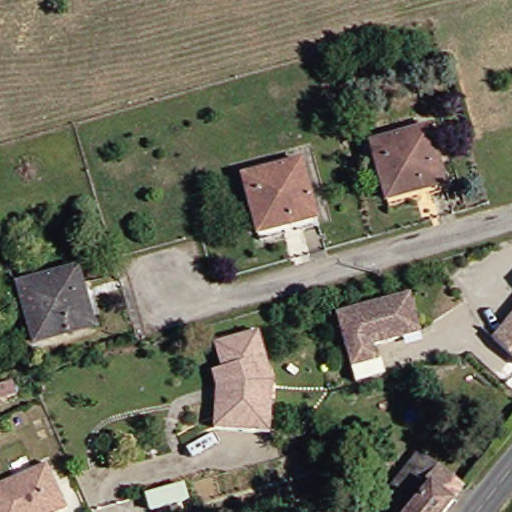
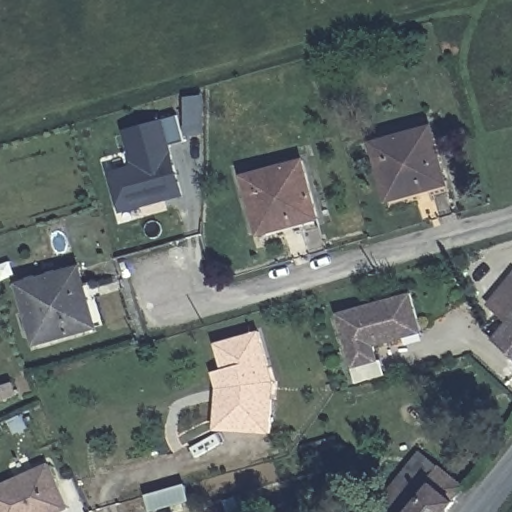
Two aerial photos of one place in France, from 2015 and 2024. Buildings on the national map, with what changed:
new [(184,144),(171,146),(184,199),(117,215),(106,175),(129,168),(130,166),(130,164),(121,131),(177,115),(184,144)]
unchanged [(421,192),(393,200),(377,144),(436,127),(450,175),(452,184),(421,192)]
unchanged [(249,176),(306,161),(322,219),(264,234),(249,176)]
unchanged [(88,263),(96,293),(105,322),(45,339),(29,280),(80,266),(88,263)]
unchanged [(426,333),(378,346),(382,360),(357,367),(342,313),(415,293),(426,333)]
unchanged [(494,340),(512,318),(512,355),(500,345),(494,340)]
unchanged [(223,388),(218,372),(229,370),(221,344),(263,333),(275,373),(277,382),(277,391),(275,432),(231,430),(220,429),(223,388)]
unchanged [(10,383),(15,395),(0,400),(0,386),(10,383)]
unchanged [(381,496),(405,465),(418,449),(432,460),(459,481),(447,497),(448,498),(437,512),(391,512),(392,510),(381,496)]
unchanged [(42,472),(60,512),(0,512),(0,491),(42,472)]
unchanged [(188,500),(151,511),(147,496),(184,485),(188,500)]

